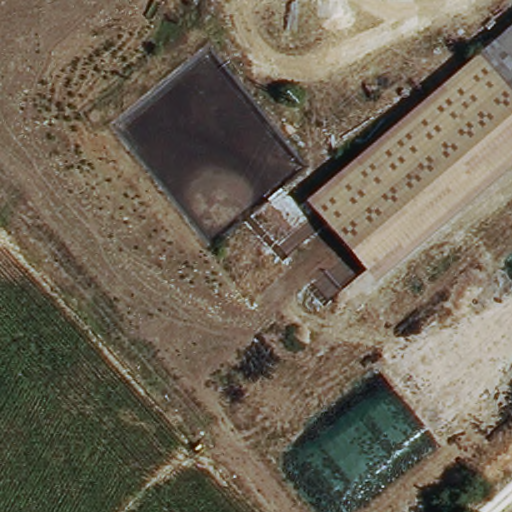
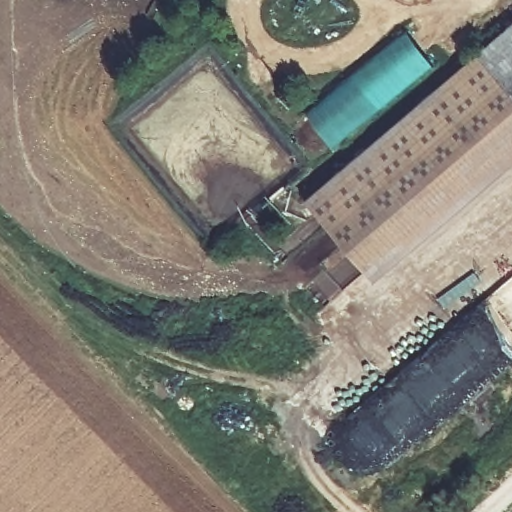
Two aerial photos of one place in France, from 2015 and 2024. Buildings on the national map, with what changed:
unchanged [(512,30),(512,148),(363,265),(307,193),(512,30)]
new [(308,113),(407,33),(432,67),(330,147),(308,113)]
unchanged [(363,265),(512,148),(512,165),(372,276),(363,265)]

